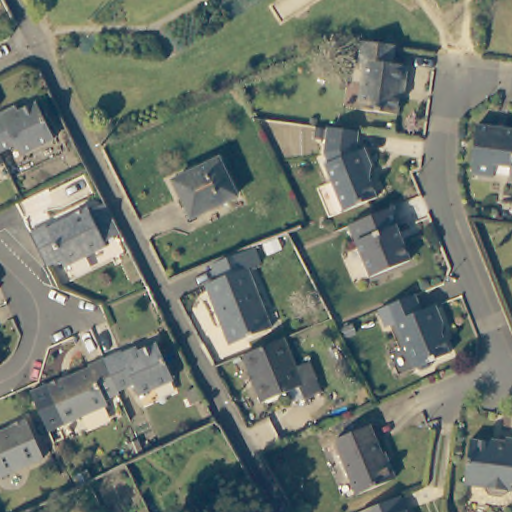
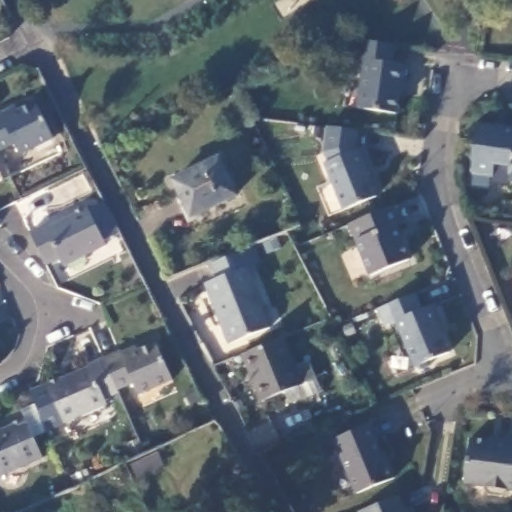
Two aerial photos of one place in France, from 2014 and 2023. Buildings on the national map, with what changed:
unchanged [(395,44),(392,63),(406,66),(404,84),(400,84),(395,113),(357,107),(364,61),(358,61),(363,40),(395,44)]
unchanged [(3,115),(18,108),(21,114),(39,105),(58,142),(23,158),(18,146),(2,154),(0,149),(0,116),(3,115)]
unchanged [(352,125),(351,144),(358,141),(366,157),(364,174),(370,190),(338,205),(317,159),(323,156),(319,147),(320,121),(352,125)]
unchanged [(510,166),(494,165),(492,177),(473,175),(470,170),(476,124),(512,128),(512,182),(507,182),(510,166)]
unchanged [(0,155),(0,149),(2,154),(0,155)]
unchanged [(190,218),(173,182),(218,159),(236,195),(190,218)]
unchanged [(399,221),(394,224),(408,259),(371,276),(348,222),(392,204),(399,221)]
unchanged [(33,236),(48,228),(49,231),(75,218),(74,217),(89,209),(109,248),(68,270),(64,262),(49,269),(33,236)]
unchanged [(252,248),(259,268),(246,273),(268,333),(229,348),(206,287),(218,282),(211,265),(252,248)]
unchanged [(421,310),(436,304),(443,321),(442,336),(449,351),(431,360),(428,366),(420,370),(415,367),(395,322),(386,326),(377,306),(414,290),(421,310)]
unchanged [(134,349),(137,356),(171,341),(187,379),(152,394),(147,382),(130,389),(116,357),(134,349)]
unchanged [(278,342),(291,369),(303,363),(312,381),(258,405),(238,358),(278,342)]
unchanged [(64,441),(61,433),(59,429),(42,389),(76,374),(77,376),(103,365),(102,363),(116,357),(130,389),(131,390),(117,396),(120,403),(69,425),(74,436),(64,441)]
unchanged [(9,429),(7,427),(23,420),(40,462),(0,479),(0,433),(9,429)]
unchanged [(353,491),(331,438),(367,423),(382,460),(386,459),(392,475),(353,491)]
unchanged [(512,490),(509,489),(501,496),(489,494),(484,486),(464,483),(471,438),(506,443),(507,438),(512,438),(512,490)]
unchanged [(405,511),(412,507),(415,512),(363,512),(399,497),(405,511)]

